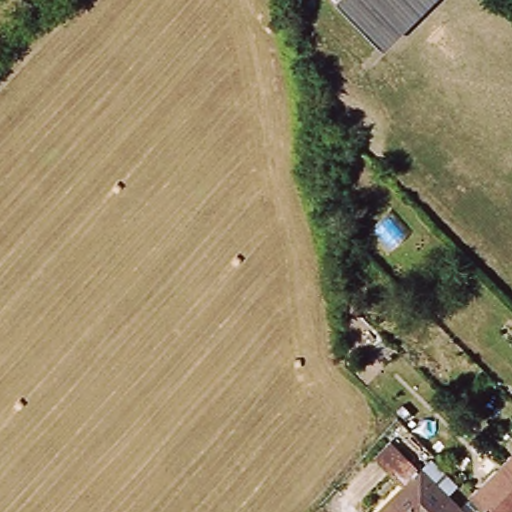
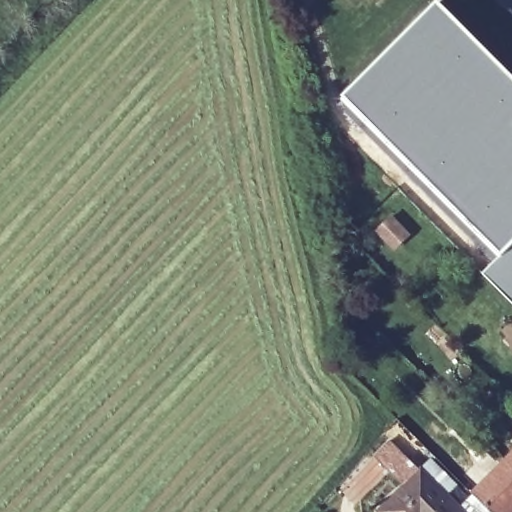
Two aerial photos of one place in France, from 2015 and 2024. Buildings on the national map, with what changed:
demolished [(336,0),(440,0),(387,52),(336,0)]
new [(512,88),(512,315),(477,280),(497,262),(338,104),(433,9),(512,88)]
new [(389,219),(407,236),(393,251),(375,234),(389,219)]
unchanged [(512,460),(512,512),(483,512),(472,500),(505,466),(512,460)]
unchanged [(457,512),(385,512),(422,476),(457,512)]

